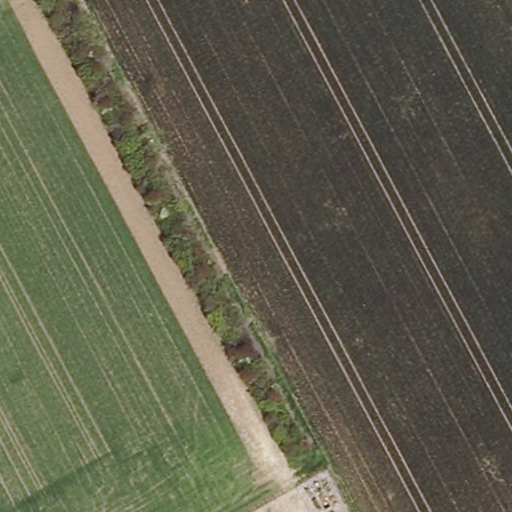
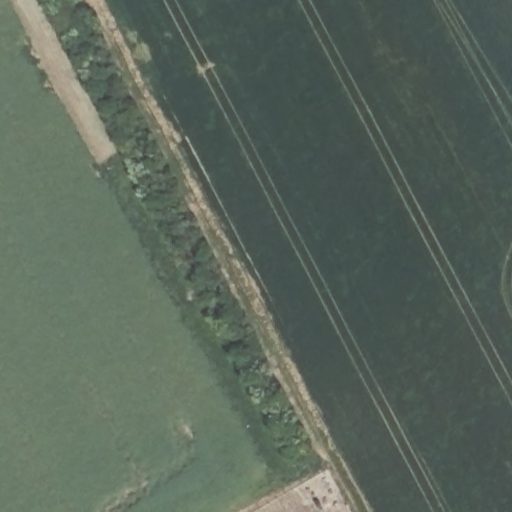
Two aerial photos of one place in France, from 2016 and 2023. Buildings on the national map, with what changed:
[]

